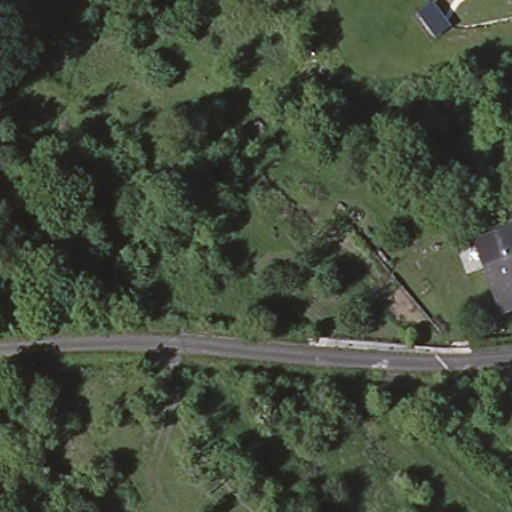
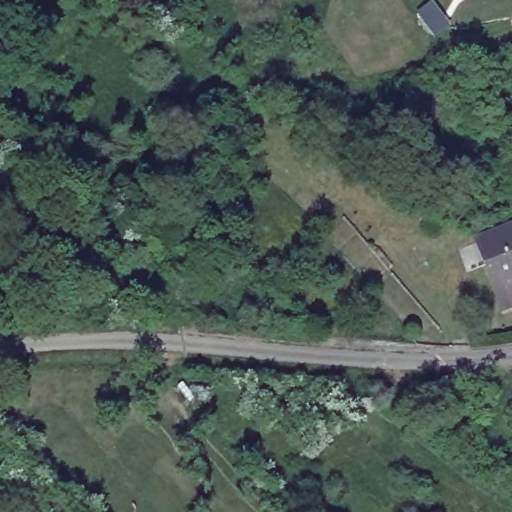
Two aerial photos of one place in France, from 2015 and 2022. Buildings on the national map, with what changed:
unchanged [(449,26),(435,37),(422,20),(437,10),(449,26)]
unchanged [(510,217),(512,217),(512,221),(510,217)]
unchanged [(497,304),(481,260),(462,267),(455,244),(472,237),(489,232),(507,241),(512,243),(512,298),(497,304)]

